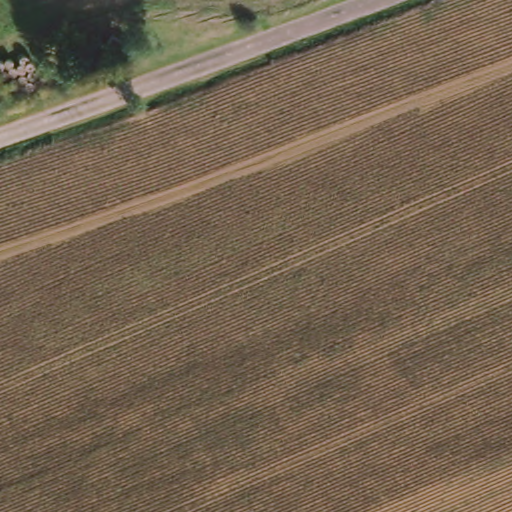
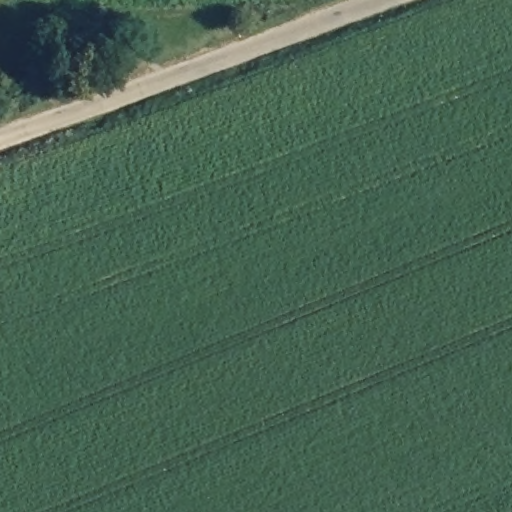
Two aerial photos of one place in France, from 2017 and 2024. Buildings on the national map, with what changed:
unchanged [(28,48),(40,76),(11,88),(0,69),(0,61),(28,48)]

